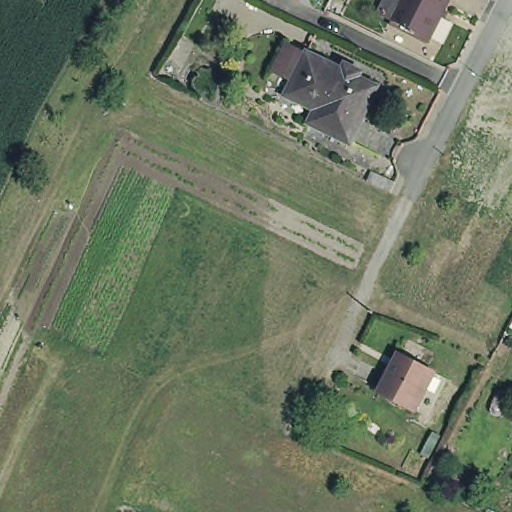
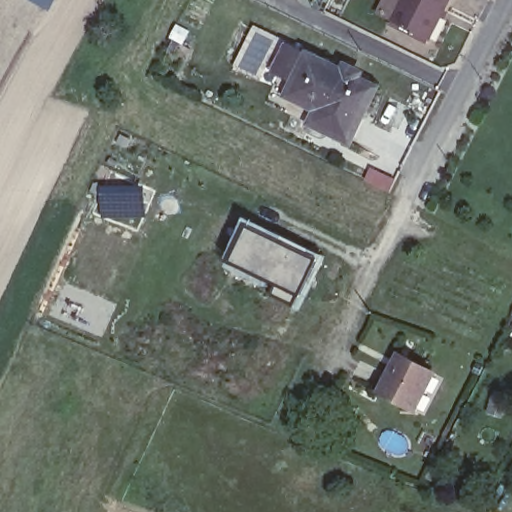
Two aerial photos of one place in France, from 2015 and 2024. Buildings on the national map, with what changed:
unchanged [(390,19),(378,13),(385,0),(447,0),(427,38),(425,42),(389,24),(392,20),(390,19)]
unchanged [(294,85),(294,89),(298,91),(320,103),(314,117),(297,108),(289,104),(285,99),(281,94),(280,89),(280,83),(280,78),(299,41),(312,47),(294,85)]
unchanged [(380,82),(354,137),(314,117),(320,103),(298,91),(294,89),(294,85),(312,47),(380,82)]
new [(312,259),(289,306),(265,295),(268,290),(217,264),(238,220),(312,259)]
unchanged [(433,376),(414,413),(379,395),(397,357),(433,376)]

